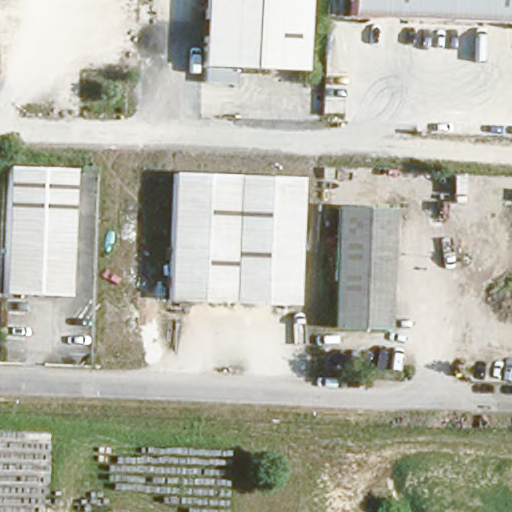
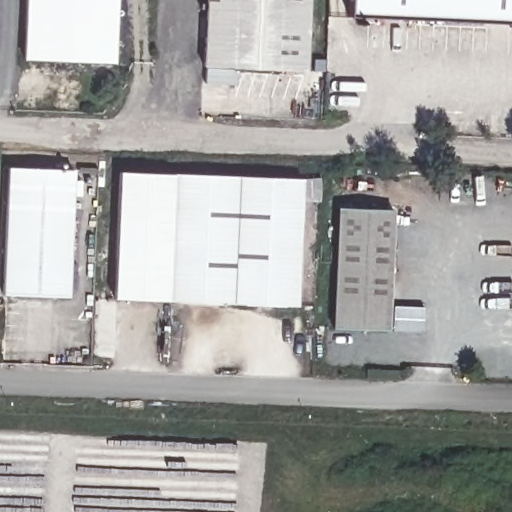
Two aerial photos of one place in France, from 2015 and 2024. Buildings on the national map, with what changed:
new [(121,65),(34,62),(36,0),(124,0),(121,65)]
unchanged [(302,70),(201,67),(203,0),(305,0),(302,70)]
unchanged [(350,0),(512,0),(512,25),(348,17),(350,0)]
unchanged [(65,302),(0,299),(0,271),(4,172),(69,175),(65,302)]
new [(119,172),(171,174),(171,184),(167,300),(114,299),(119,172)]
unchanged [(298,188),(294,315),(167,311),(171,184),(298,188)]
unchanged [(389,214),(385,333),(332,332),(336,212),(389,214)]

